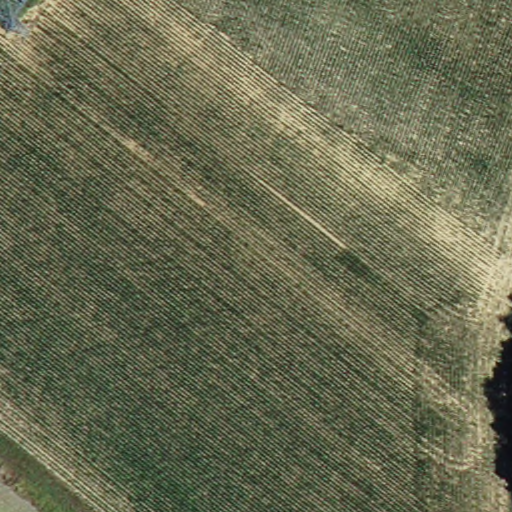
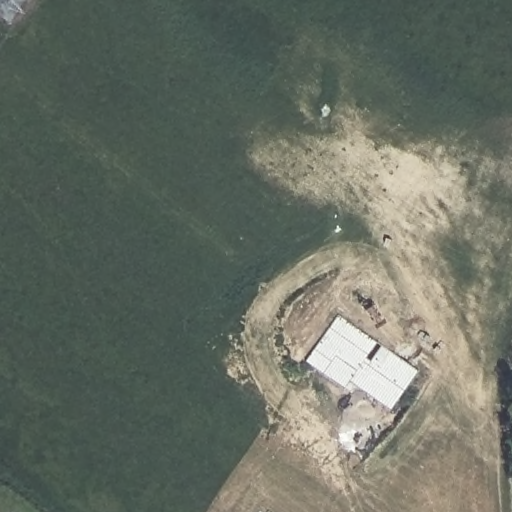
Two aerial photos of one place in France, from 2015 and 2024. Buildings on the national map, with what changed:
new [(391,409),(350,380),(344,388),(306,360),(338,315),(418,371),(391,409)]

